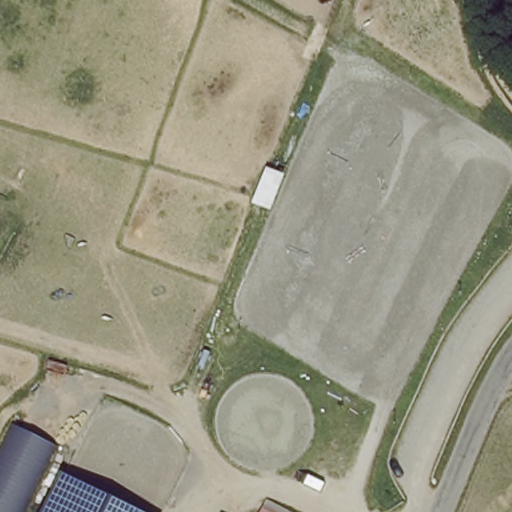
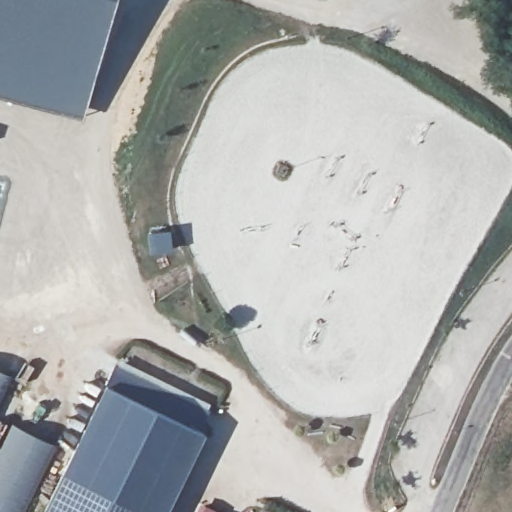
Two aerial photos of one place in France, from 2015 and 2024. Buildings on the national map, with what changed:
new [(83,119),(0,97),(0,0),(114,0),(83,119)]
new [(41,512),(105,383),(114,363),(208,410),(197,430),(203,433),(164,512),(41,512)]
new [(14,377),(0,406),(0,371),(14,377)]
unchanged [(54,445),(20,512),(0,512),(0,445),(11,423),(54,445)]
demolished [(146,512),(24,512),(48,462),(146,512)]
unchanged [(270,512),(261,512),(263,508),(270,512)]

